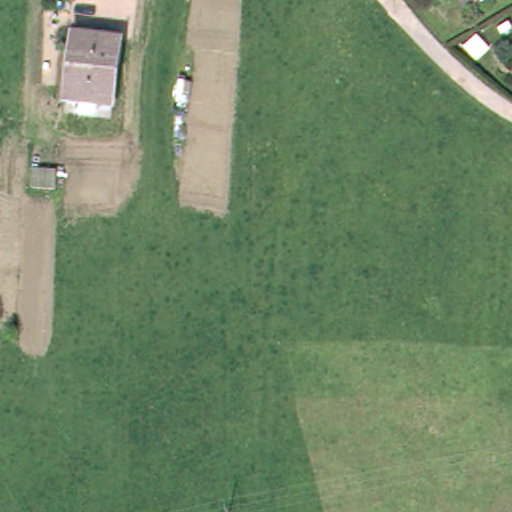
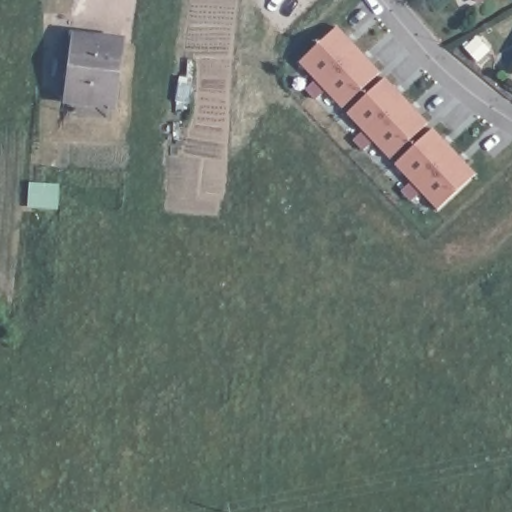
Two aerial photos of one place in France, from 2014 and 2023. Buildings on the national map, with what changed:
new [(378,71),(340,106),(298,61),(337,26),(378,71)]
unchanged [(76,35),(124,41),(116,106),(67,101),(76,35)]
new [(427,121),(388,158),(346,113),(385,76),(427,121)]
new [(475,172),(436,209),(394,164),(433,127),(475,172)]

